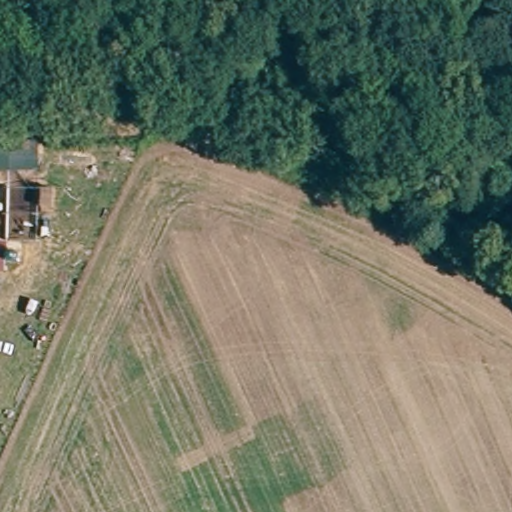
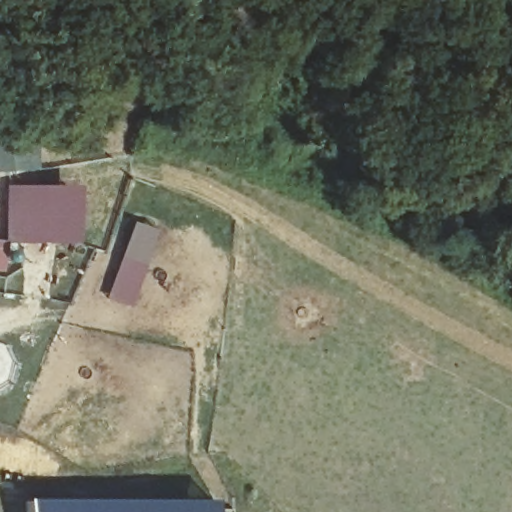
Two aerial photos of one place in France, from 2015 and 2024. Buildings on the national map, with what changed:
unchanged [(0,171),(0,142),(39,142),(40,169),(0,171)]
new [(0,273),(0,241),(6,241),(7,187),(80,186),(79,243),(9,244),(5,273),(0,273)]
new [(131,307),(107,299),(135,222),(159,229),(131,307)]
new [(30,512),(30,501),(212,499),(212,512),(30,512)]

